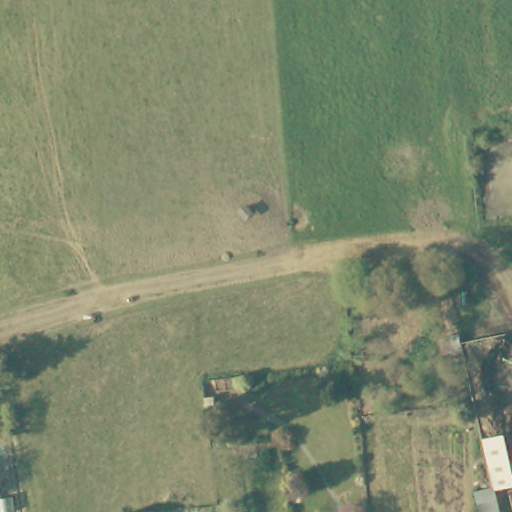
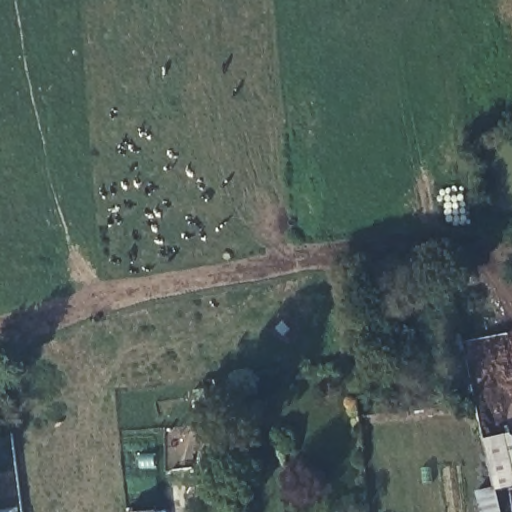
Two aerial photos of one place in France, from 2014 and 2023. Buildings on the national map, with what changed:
unchanged [(157,512),(131,512),(157,510),(157,512)]

